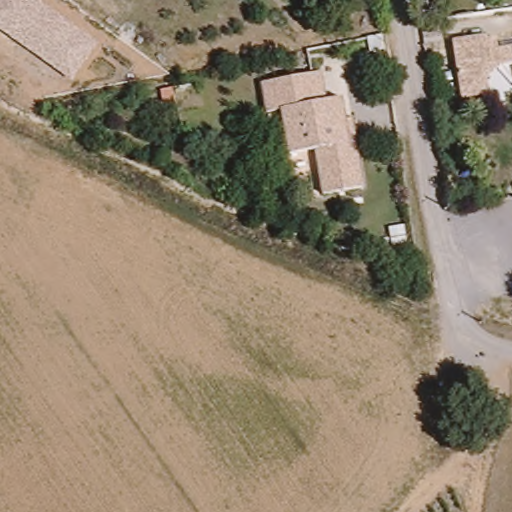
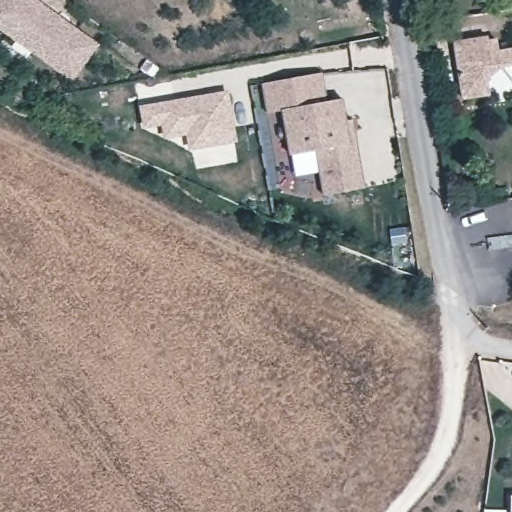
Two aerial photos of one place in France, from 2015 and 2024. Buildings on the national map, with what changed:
unchanged [(0,31),(0,0),(36,0),(100,45),(73,83),(0,31)]
unchanged [(460,86),(454,47),(496,41),(499,54),(512,52),(512,68),(498,69),(485,83),(488,95),(463,99),(460,86)]
unchanged [(336,99),(340,121),(346,120),(350,142),(358,191),(318,198),(310,152),(284,157),(276,113),(261,115),(256,86),(315,76),(320,102),(336,99)]
new [(190,149),(187,135),(166,139),(162,125),(144,128),(140,106),(228,90),(237,141),(190,149)]
new [(512,493),(512,512),(509,512),(510,493),(512,493)]

